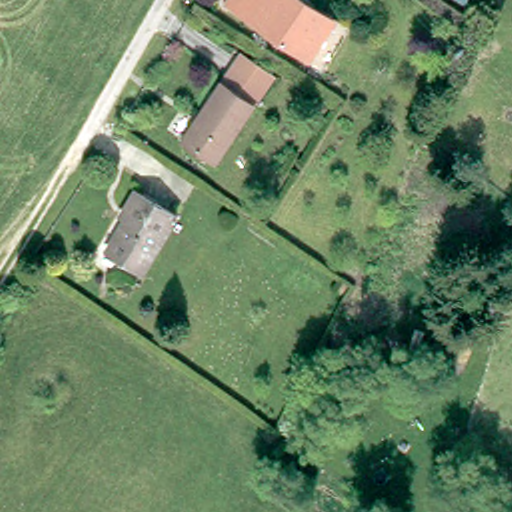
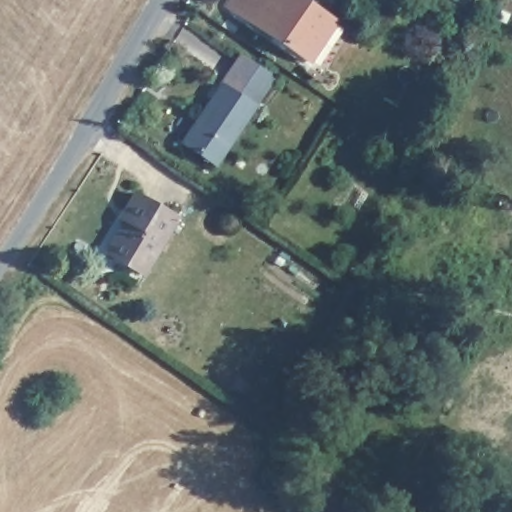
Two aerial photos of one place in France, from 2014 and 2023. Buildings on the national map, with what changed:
unchanged [(312,66),(225,10),(231,0),(303,0),(328,17),(338,23),(327,41),(312,66)]
unchanged [(251,108),(218,89),(237,59),(269,77),(251,108)]
unchanged [(220,162),(187,144),(218,89),(251,108),(220,162)]
unchanged [(112,259),(134,222),(127,217),(138,197),(178,222),(143,278),(112,259)]

